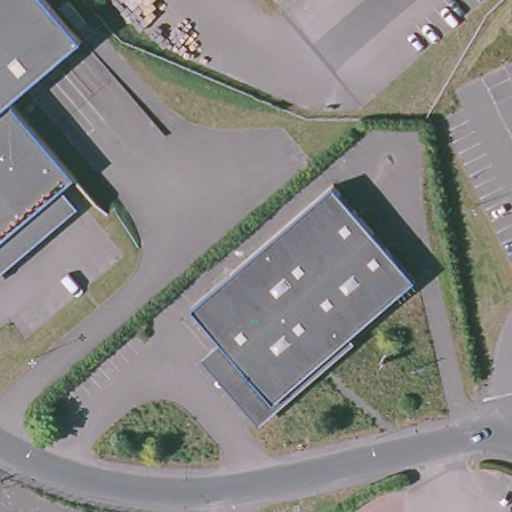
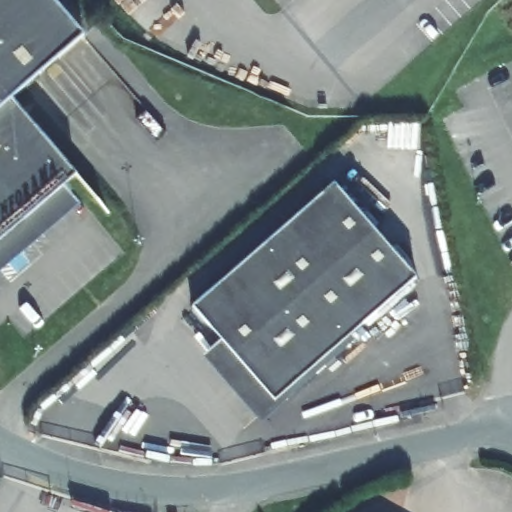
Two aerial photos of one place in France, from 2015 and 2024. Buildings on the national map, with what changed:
unchanged [(9,94),(75,167),(62,179),(0,232),(0,0),(54,0),(81,31),(9,94)]
unchanged [(62,179),(80,197),(0,264),(0,232),(62,179)]
unchanged [(205,361),(224,344),(194,310),(336,185),(417,283),(354,338),(359,344),(282,411),(262,428),(205,361)]

